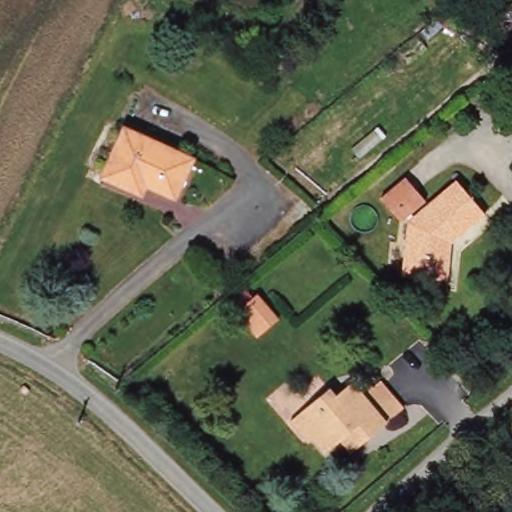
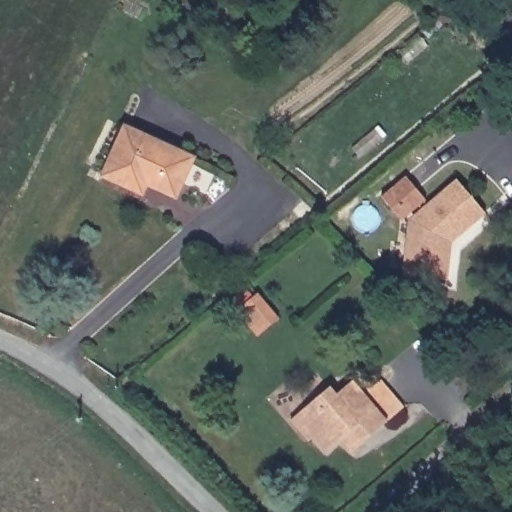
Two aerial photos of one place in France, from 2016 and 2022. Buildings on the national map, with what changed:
unchanged [(139,187),(112,172),(135,124),(199,156),(181,194),(152,181),(147,191),(139,187)]
unchanged [(417,213),(405,222),(384,195),(412,174),(433,201),(417,213)]
unchanged [(456,241),(450,280),(409,275),(415,219),(436,203),(463,182),(489,214),(456,241)]
unchanged [(252,327),(243,316),(232,304),(241,297),(251,287),(272,310),(252,327)]
unchanged [(342,446),(327,459),(311,439),(305,443),(288,422),(299,415),(298,414),(328,390),(335,398),(352,385),(363,400),(382,385),(403,413),(359,449),(351,456),(342,446)]

